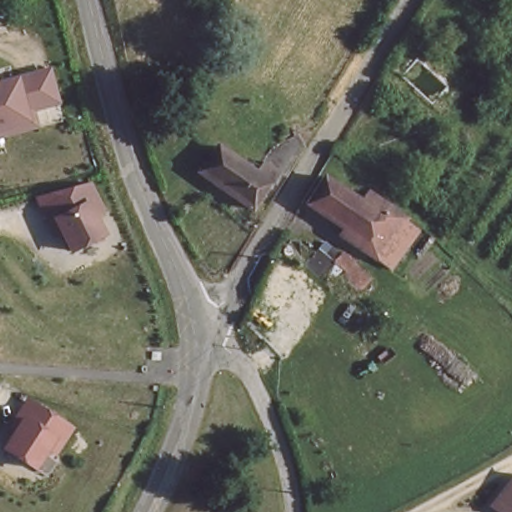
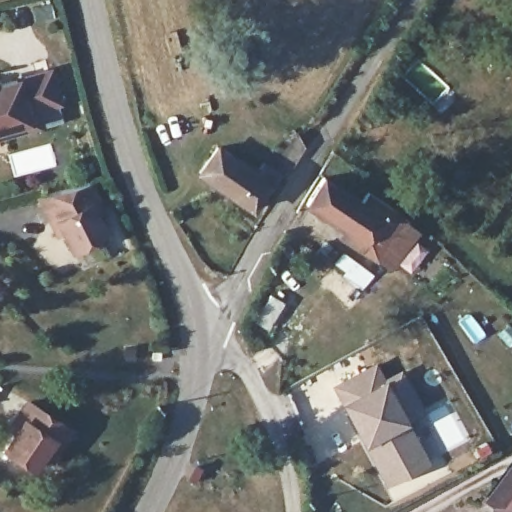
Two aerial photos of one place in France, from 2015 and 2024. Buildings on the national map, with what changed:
unchanged [(403,76),(426,51),(466,90),(444,113),(403,76)]
unchanged [(31,110),(33,125),(0,133),(0,83),(27,74),(52,68),(60,104),(31,110)]
unchanged [(211,138),(254,169),(274,141),(291,138),(297,142),(268,186),(261,183),(246,202),(191,166),(211,138)]
unchanged [(112,205),(101,212),(110,235),(75,250),(62,215),(53,219),(47,202),(98,177),(112,205)]
unchanged [(326,177),(366,204),(372,196),(409,224),(384,265),(366,251),(371,241),(311,200),(326,177)]
new [(385,485),(363,445),(339,400),(329,384),(375,360),(384,376),(399,368),(424,411),(407,421),(429,463),(385,485)]
unchanged [(73,422),(42,470),(12,452),(24,423),(18,418),(29,396),(73,422)]
unchanged [(504,510),(497,504),(512,484),(512,512),(504,512),(504,510)]

